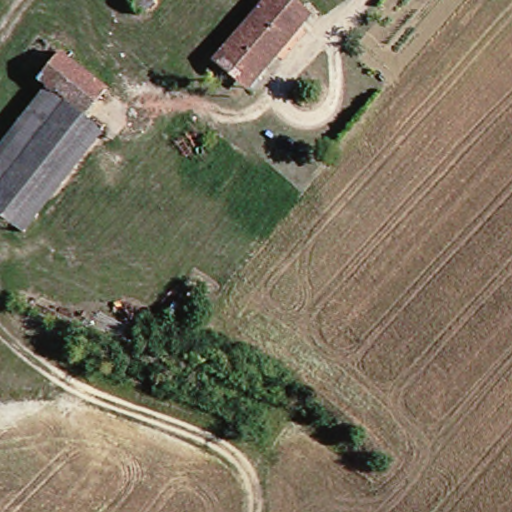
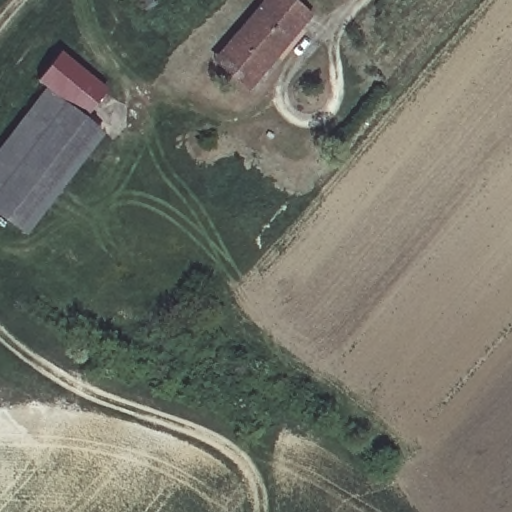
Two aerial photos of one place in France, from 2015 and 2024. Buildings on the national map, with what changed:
unchanged [(154,23),(130,0),(149,0),(163,14),(154,23)]
unchanged [(272,0),(292,0),(305,11),(317,19),(307,29),(250,84),(220,61),(272,0)]
unchanged [(74,56),(112,92),(92,117),(57,85),(51,80),(74,56)]
unchanged [(111,134),(30,220),(0,192),(0,149),(57,85),(92,117),(111,134)]

